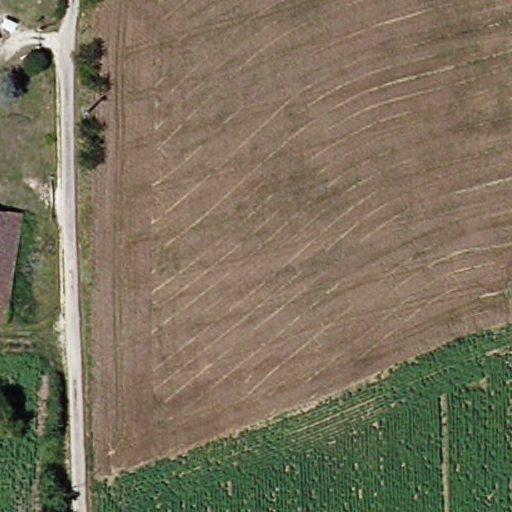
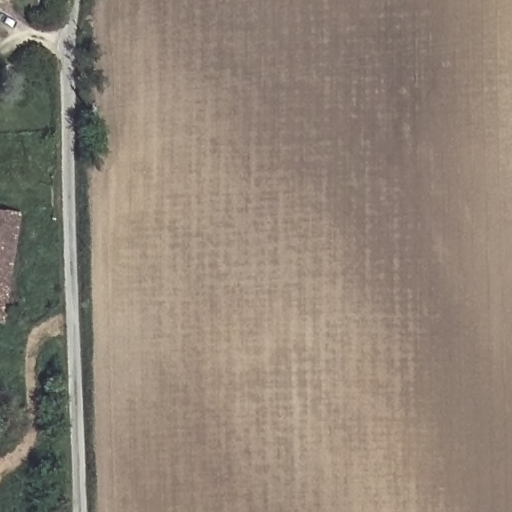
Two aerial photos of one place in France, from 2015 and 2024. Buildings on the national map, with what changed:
unchanged [(0,244),(0,213),(10,215),(5,245),(0,244)]
unchanged [(10,330),(0,328),(0,244),(5,245),(10,215),(25,216),(10,330)]

